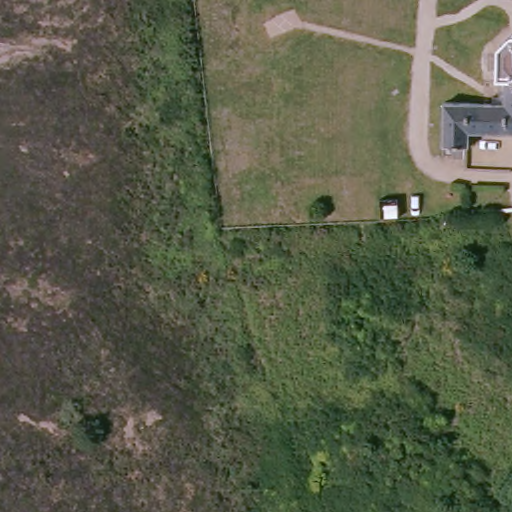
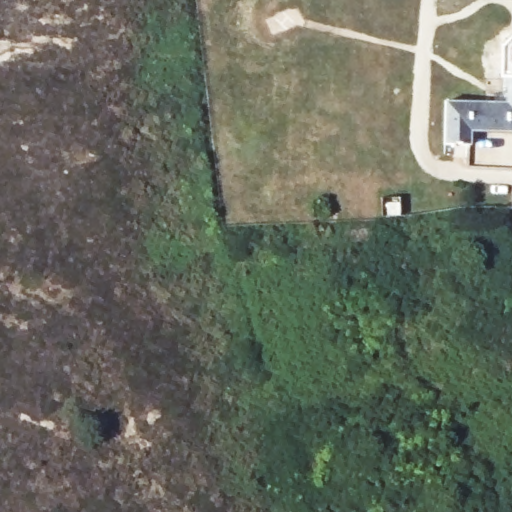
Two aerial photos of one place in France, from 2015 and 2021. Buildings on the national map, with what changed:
unchanged [(474,130),(473,145),(470,145),(470,156),(460,156),(460,153),(451,153),(451,144),(448,143),(448,102),(510,101),(511,74),(508,73),(509,47),(512,43),(512,131),(474,130)]

